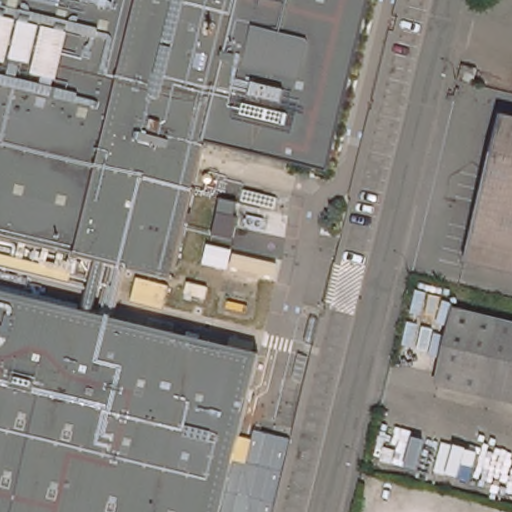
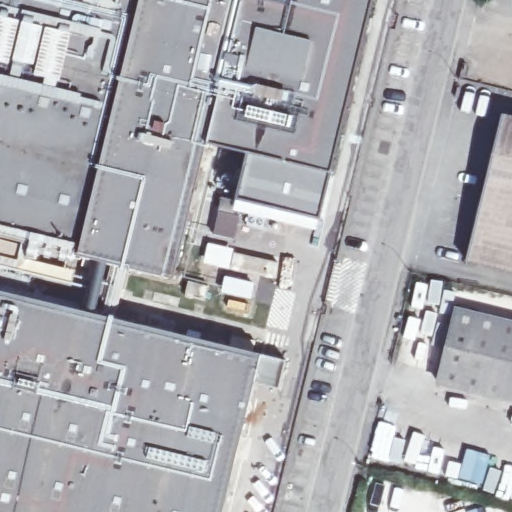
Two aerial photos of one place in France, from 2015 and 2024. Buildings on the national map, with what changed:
unchanged [(206,142),(0,92),(0,0),(372,0),(330,172),(206,142)]
unchanged [(125,268),(113,318),(260,352),(221,512),(62,512),(0,497),(0,92),(206,142),(172,279),(125,268)]
unchanged [(470,260),(503,117),(512,120),(512,270),(470,260)]
new [(316,226),(235,207),(250,152),(330,172),(316,226)]
unchanged [(512,323),(512,398),(439,381),(456,310),(512,323)]
unchanged [(0,497),(62,512),(0,512),(0,497)]

